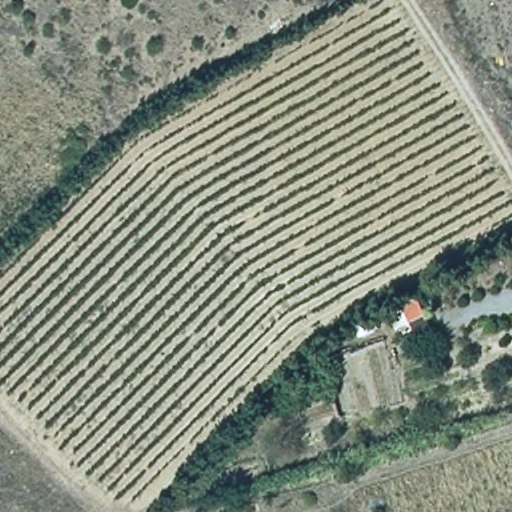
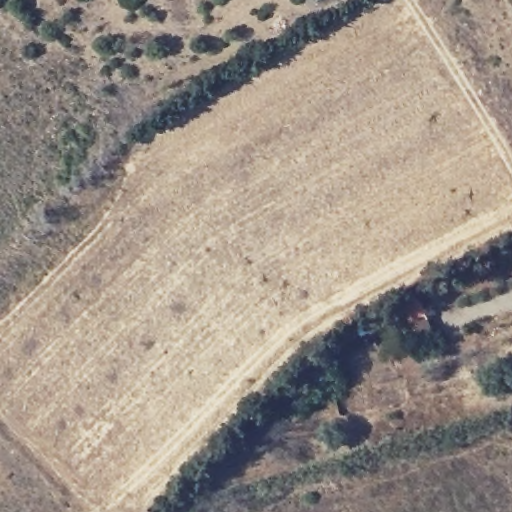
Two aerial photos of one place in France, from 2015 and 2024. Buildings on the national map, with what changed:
unchanged [(419,300),(427,318),(399,331),(389,313),(419,300)]

